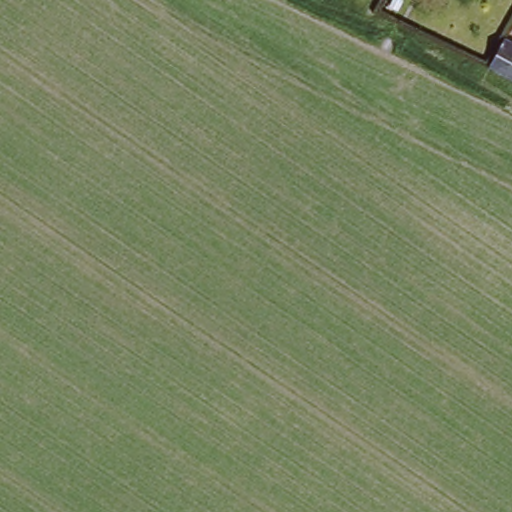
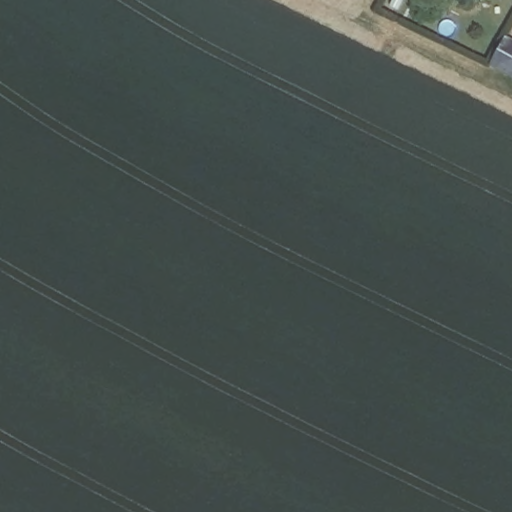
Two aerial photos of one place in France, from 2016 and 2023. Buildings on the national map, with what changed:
unchanged [(491,66),(505,33),(512,38),(512,78),(491,66)]

